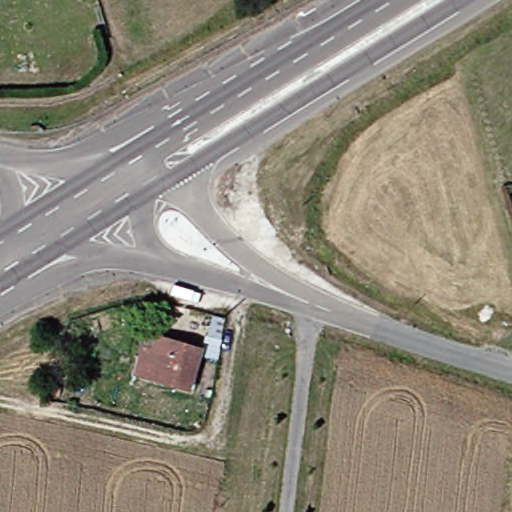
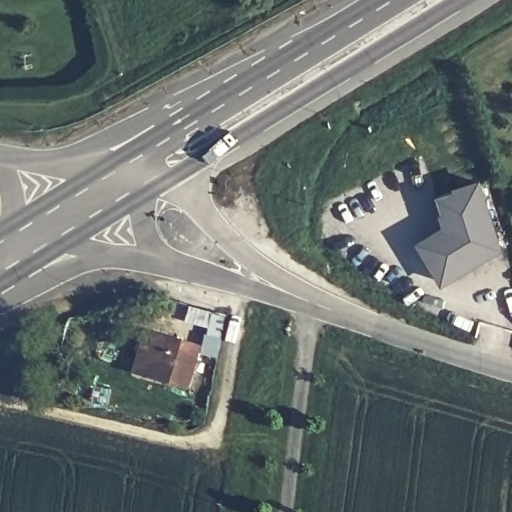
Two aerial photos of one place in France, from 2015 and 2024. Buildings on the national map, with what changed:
new [(448,231),(437,200),(480,185),(502,248),(450,285),(423,249),(448,231)]
new [(219,359),(207,357),(211,346),(205,344),(209,329),(187,323),(192,307),(227,316),(219,359)]
unchanged [(147,342),(157,345),(162,331),(211,346),(197,387),(139,369),(147,342)]

